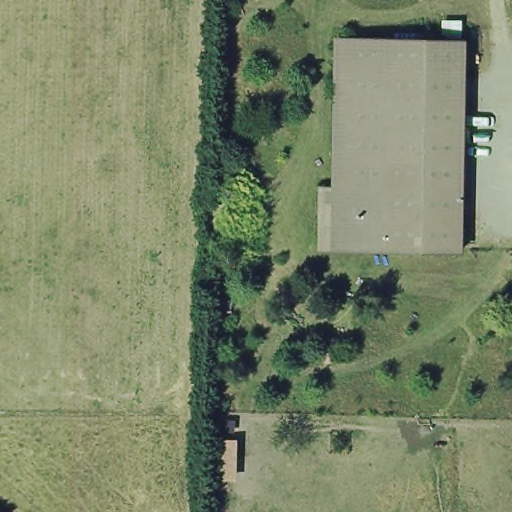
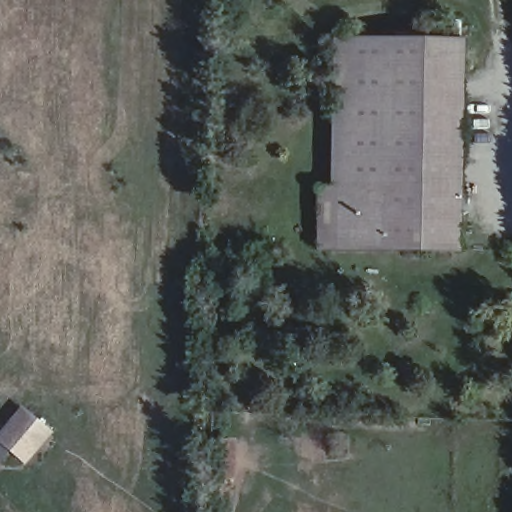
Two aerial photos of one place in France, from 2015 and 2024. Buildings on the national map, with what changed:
unchanged [(338,187),(341,37),(465,39),(461,250),(337,248),(338,187)]
unchanged [(338,187),(337,248),(318,248),(319,187),(338,187)]
new [(25,408),(56,434),(28,468),(0,444),(0,434),(25,408)]

